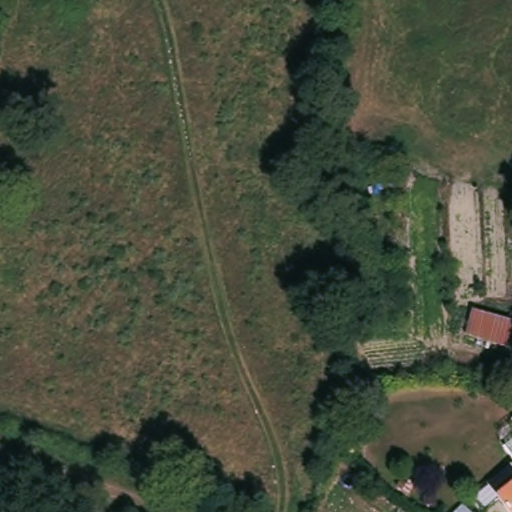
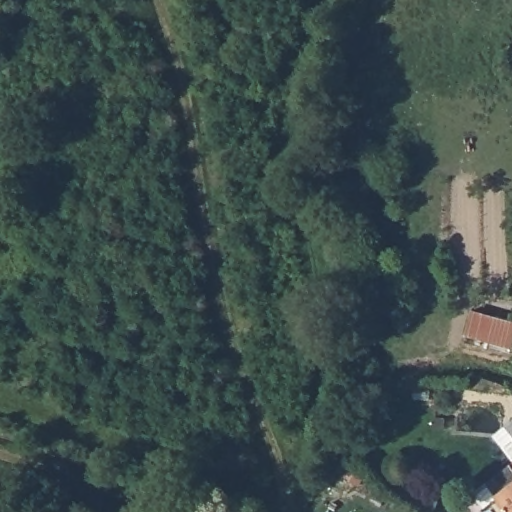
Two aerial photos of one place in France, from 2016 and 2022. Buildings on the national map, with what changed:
unchanged [(475,310),(512,319),(512,346),(470,336),(475,310)]
unchanged [(512,467),(512,509),(493,483),(512,467)]

